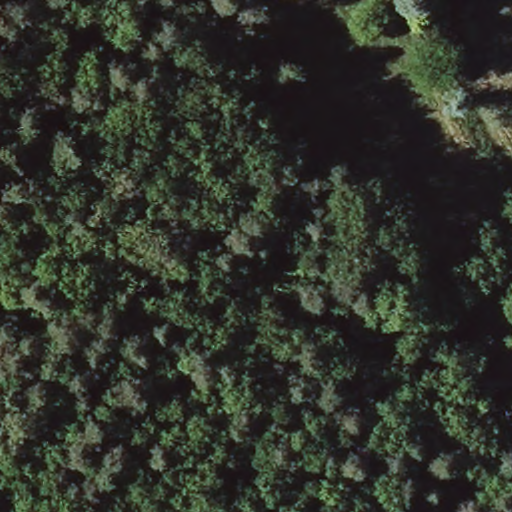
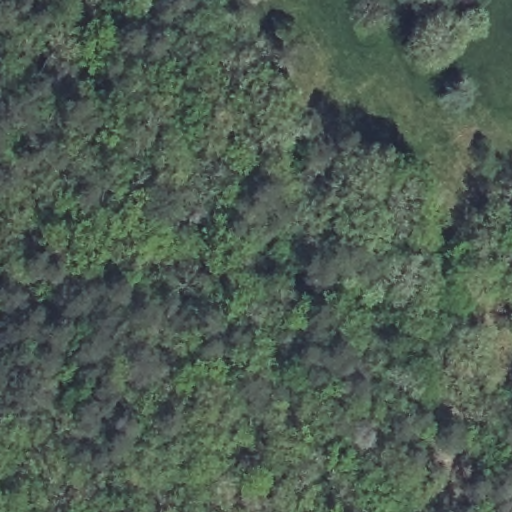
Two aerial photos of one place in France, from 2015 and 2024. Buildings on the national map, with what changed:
unchanged [(222,90),(231,106),(217,115),(208,99),(222,90)]

